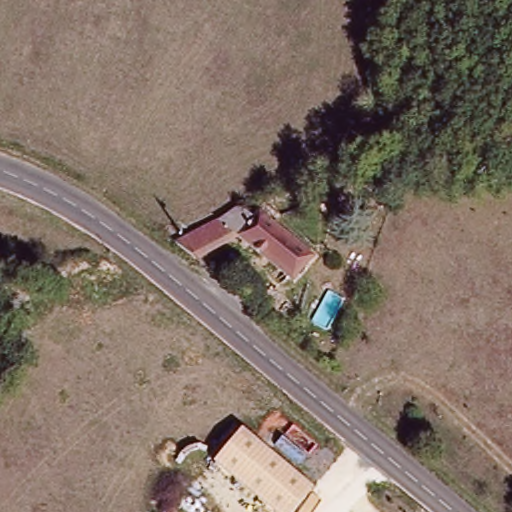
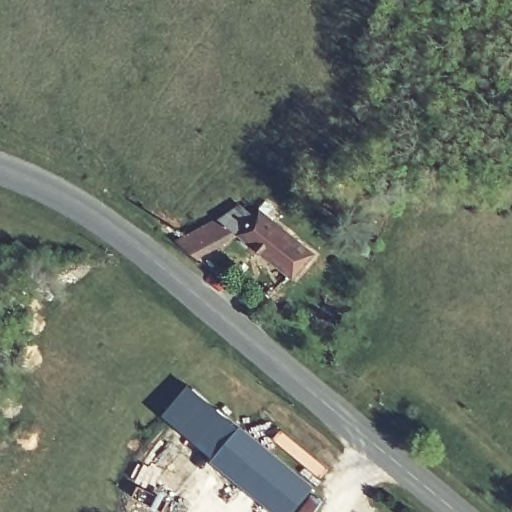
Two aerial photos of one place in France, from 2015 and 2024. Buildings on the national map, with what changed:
unchanged [(256,218),(265,212),(315,253),(293,278),(242,237),(204,262),(181,241),(241,205),(256,218)]
new [(217,464),(164,416),(190,385),(245,428),(217,464)]
unchanged [(317,488),(298,512),(276,512),(217,464),(245,428),(317,488)]

